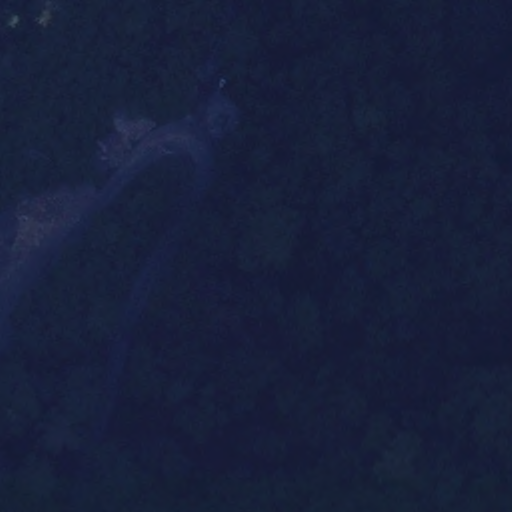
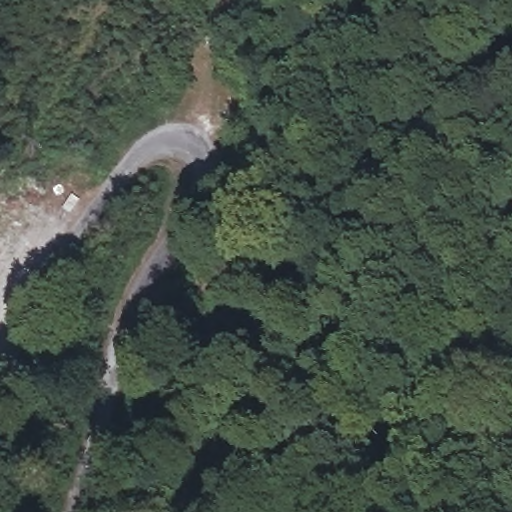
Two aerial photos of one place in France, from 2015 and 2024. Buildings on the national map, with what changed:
[]

